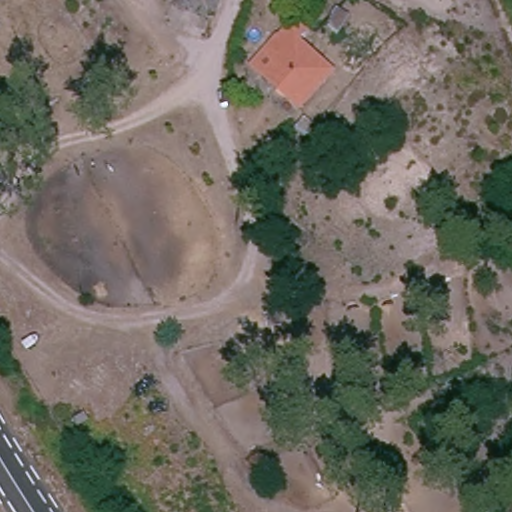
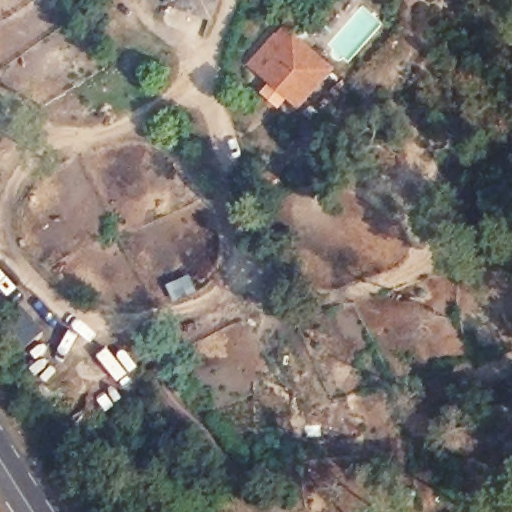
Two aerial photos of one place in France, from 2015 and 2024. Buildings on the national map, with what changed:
unchanged [(333,59),(298,98),(264,67),(299,26),(333,59)]

